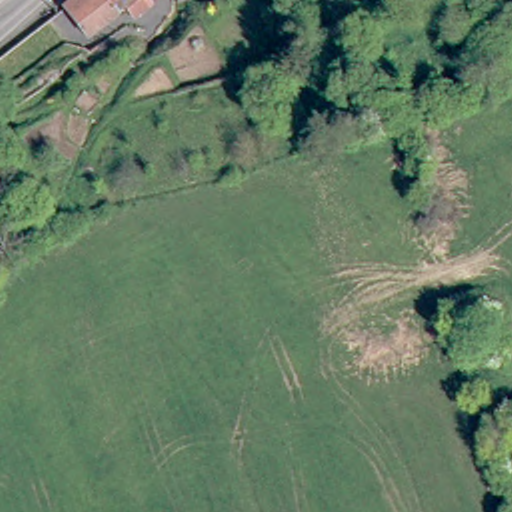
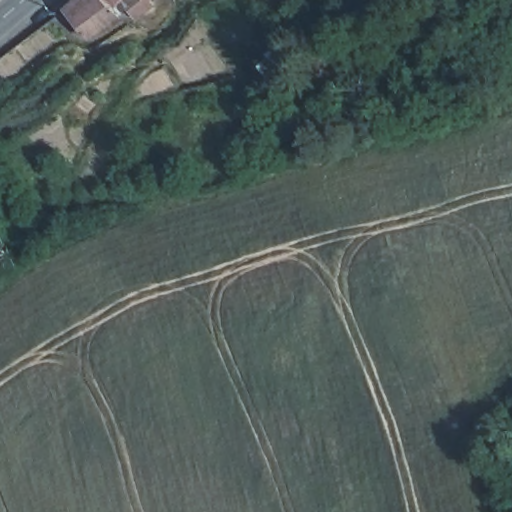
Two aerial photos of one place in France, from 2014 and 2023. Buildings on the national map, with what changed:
unchanged [(120,12),(98,29),(101,33),(91,40),(65,4),(70,0),(110,0),(110,1),(120,12)]
unchanged [(110,1),(110,0),(112,0),(110,1)]
unchanged [(146,3),(143,0),(150,0),(146,3)]

